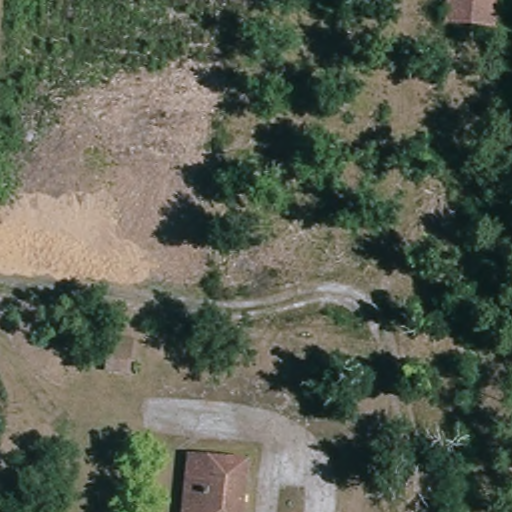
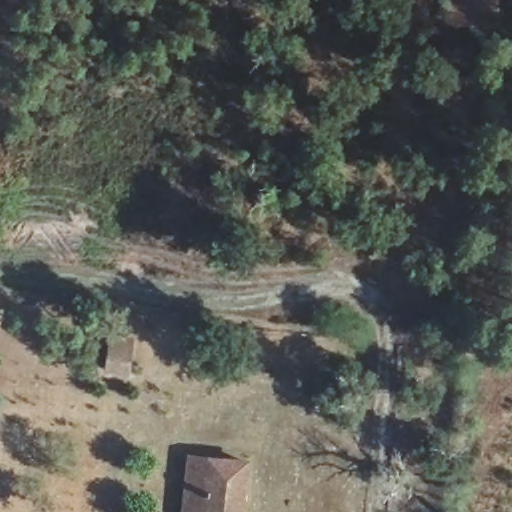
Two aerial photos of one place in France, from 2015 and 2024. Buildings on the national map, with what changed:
unchanged [(448,21),(450,0),(496,0),(494,26),(448,21)]
unchanged [(246,457),(239,512),(185,512),(191,451),(246,457)]

